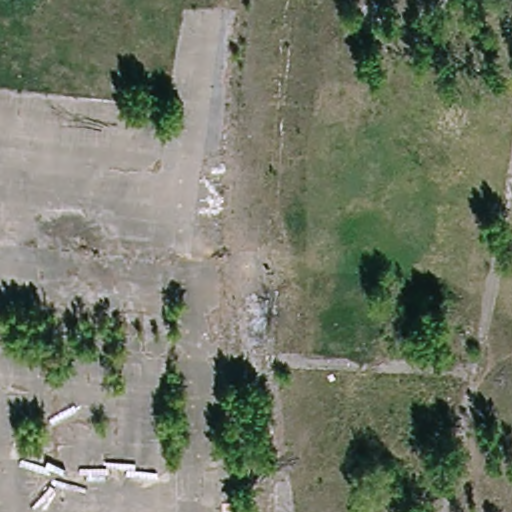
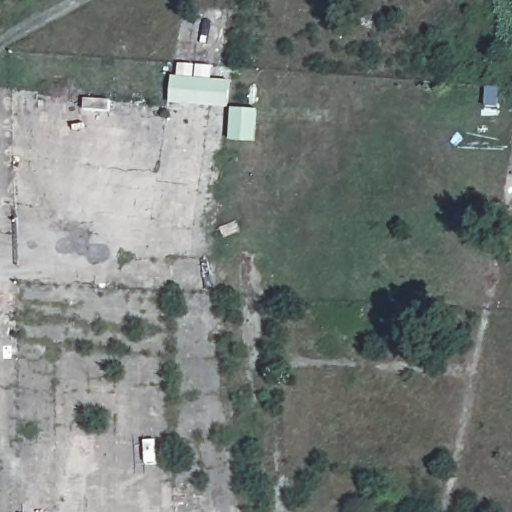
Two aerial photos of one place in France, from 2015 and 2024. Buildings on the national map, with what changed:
new [(228,108),(170,103),(172,76),(231,81),(228,108)]

